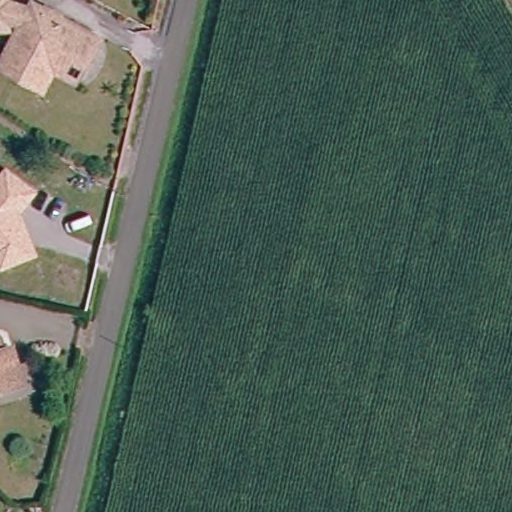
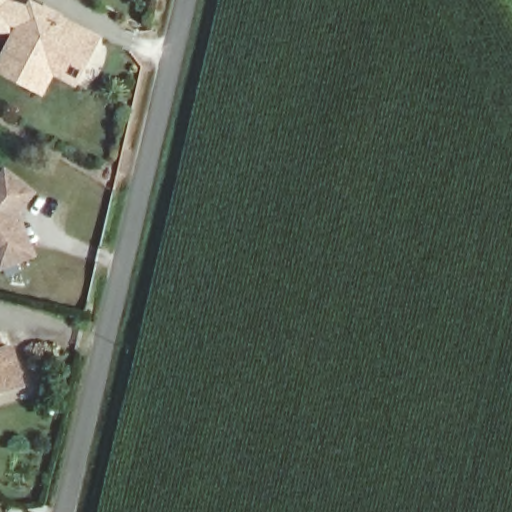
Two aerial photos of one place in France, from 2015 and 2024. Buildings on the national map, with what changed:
unchanged [(44,92),(35,87),(0,69),(24,25),(13,19),(13,28),(0,29),(0,0),(11,0),(11,2),(32,9),(35,3),(49,11),(61,17),(60,19),(100,41),(84,73),(79,82),(55,70),(44,92)]
unchanged [(33,190),(16,210),(21,222),(32,252),(0,263),(0,175),(5,168),(33,190)]
unchanged [(11,346),(22,383),(0,390),(0,348),(0,349),(11,346)]

